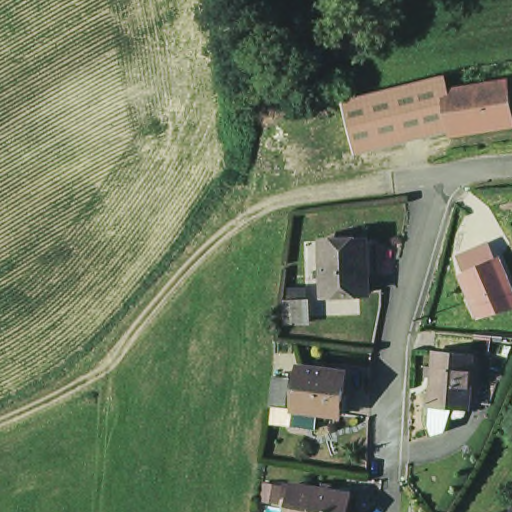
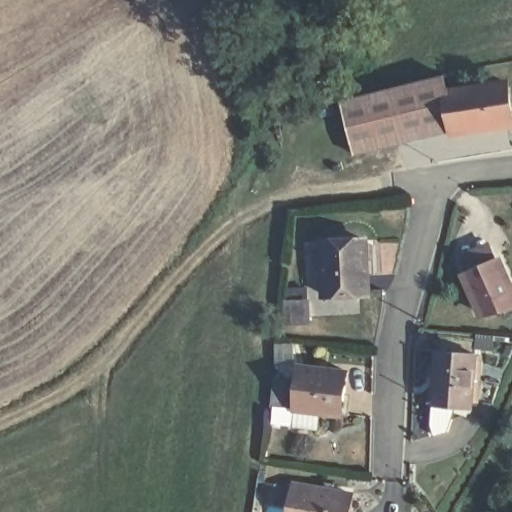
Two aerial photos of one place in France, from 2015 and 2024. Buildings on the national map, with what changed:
unchanged [(450,90),(447,90),(455,127),(355,150),(342,95),(352,93),(417,78),(445,71),(450,90)]
unchanged [(510,79),(512,92),(512,119),(455,129),(455,127),(447,90),(450,90),(510,79)]
unchanged [(325,305),(323,253),(366,251),(367,303),(325,305)]
unchanged [(487,320),(475,292),(469,279),(502,264),(507,277),(512,287),(512,309),(504,312),(487,320)]
unchanged [(286,283),(307,286),(304,308),(283,306),(286,283)]
unchanged [(437,433),(434,422),(434,399),(435,376),(427,375),(427,366),(435,367),(435,350),(474,351),(482,351),(481,400),(472,400),(457,399),(451,428),(437,433)]
unchanged [(297,412),(302,372),(317,374),(318,367),(327,368),(327,375),(349,377),(344,417),(322,415),(320,431),(295,428),(297,412)]
unchanged [(292,383),(288,412),(274,410),(277,382),(292,383)]
unchanged [(358,494),(355,512),(296,512),(301,484),(358,494)]

